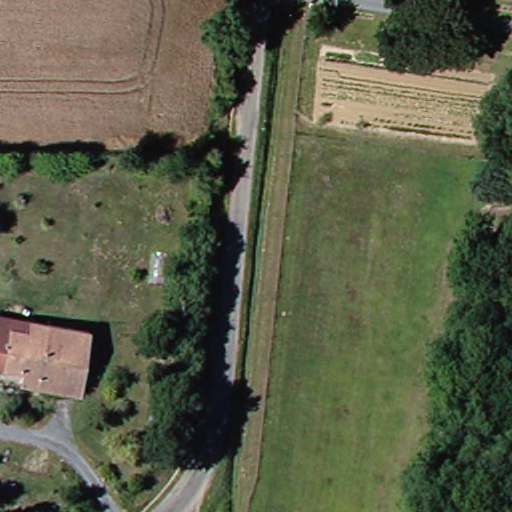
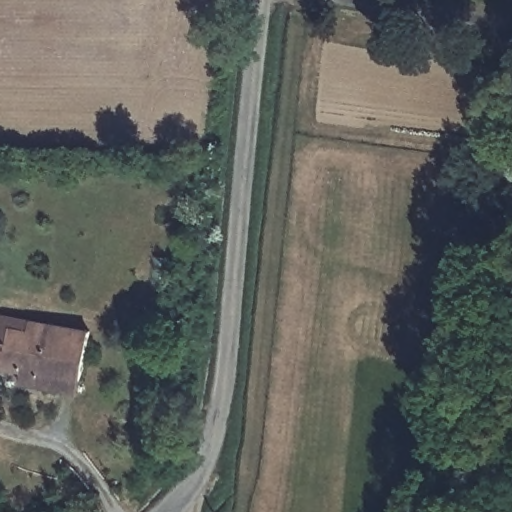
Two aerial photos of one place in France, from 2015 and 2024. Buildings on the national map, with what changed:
unchanged [(23,378),(25,366),(5,363),(0,363),(0,314),(12,315),(30,317),(91,325),(85,373),(82,386),(23,378)]

